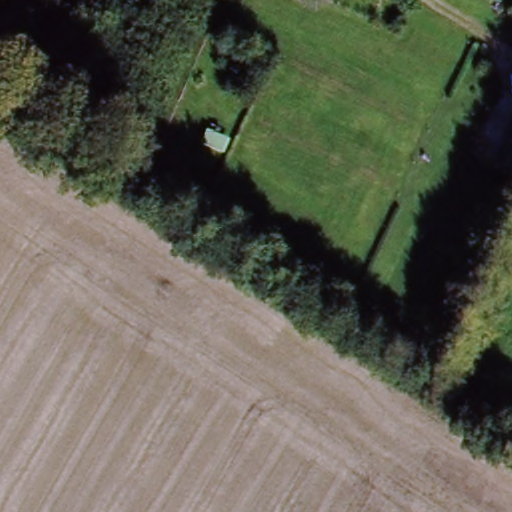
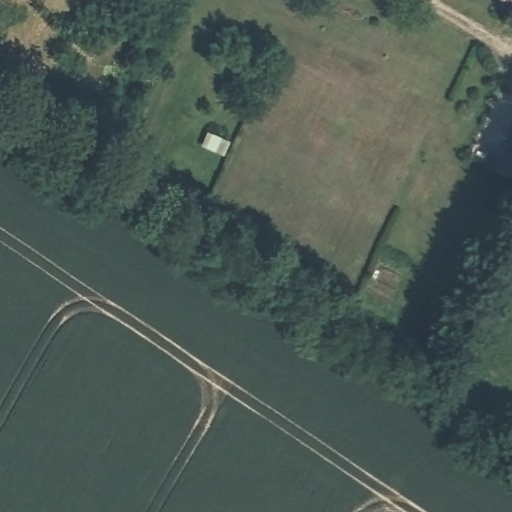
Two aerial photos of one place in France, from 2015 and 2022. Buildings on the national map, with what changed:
unchanged [(498,0),(510,0),(508,5),(498,0)]
unchanged [(494,102),(512,110),(512,119),(494,161),(473,152),(494,102)]

